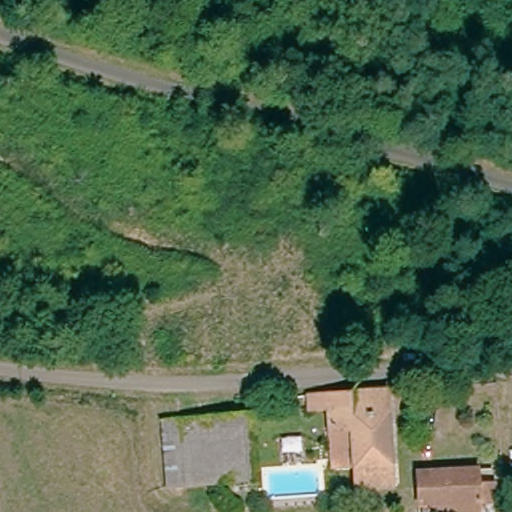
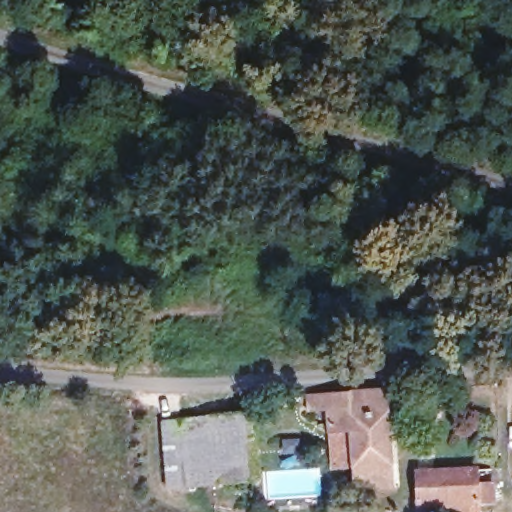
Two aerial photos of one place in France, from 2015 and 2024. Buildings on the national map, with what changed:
unchanged [(335,426),(333,408),(308,411),(307,392),(392,387),(399,480),(362,481),(360,457),(338,459),(335,426)]
unchanged [(163,422),(252,416),(261,482),(167,491),(163,422)]
unchanged [(482,501),(421,503),(420,472),(481,469),(482,501)]

